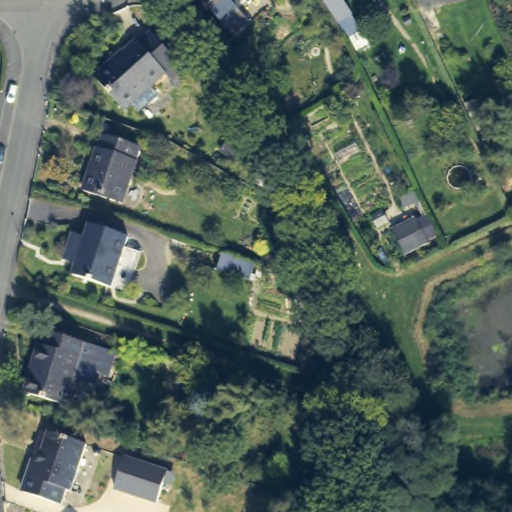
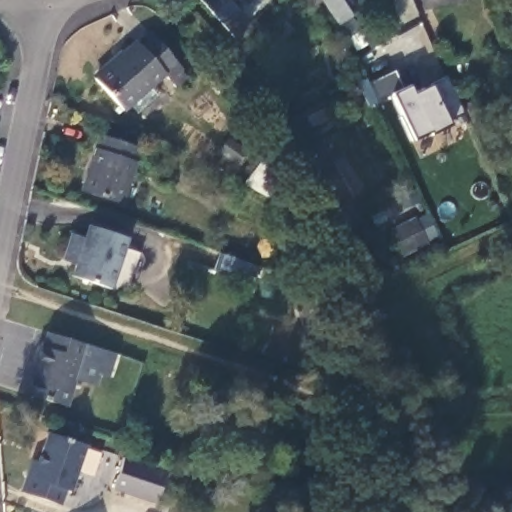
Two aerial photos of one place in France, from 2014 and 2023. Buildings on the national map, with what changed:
unchanged [(247,20),(231,0),(259,0),(264,6),(247,20)]
unchanged [(180,64),(166,77),(161,72),(124,104),(95,74),(134,38),(137,41),(150,31),(180,64)]
new [(449,124),(414,139),(393,94),(409,86),(412,94),(431,85),(448,76),(462,113),(449,124)]
unchanged [(137,146),(133,159),(138,161),(126,203),(84,192),(96,146),(99,147),(102,136),(137,146)]
unchanged [(390,225),(417,212),(431,239),(404,253),(390,225)]
unchanged [(127,238),(113,289),(74,279),(78,264),(63,259),(70,234),(85,239),(88,226),(127,238)]
unchanged [(113,355),(105,379),(98,378),(95,387),(71,379),(63,404),(19,390),(36,343),(41,344),(44,332),(113,355)]
unchanged [(85,444),(70,489),(65,488),(60,503),(21,492),(31,458),(37,459),(45,432),(85,444)]
unchanged [(114,491),(125,459),(168,472),(157,504),(114,491)]

